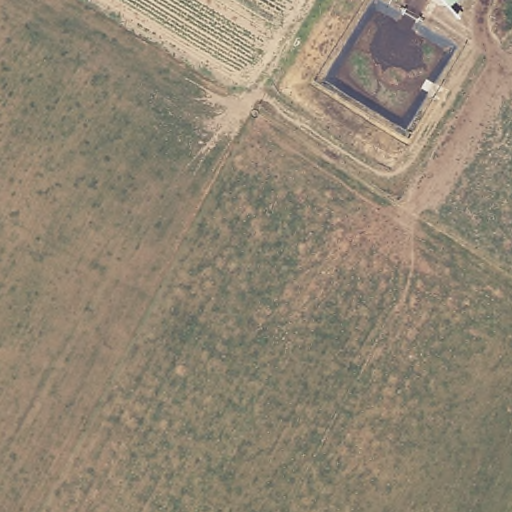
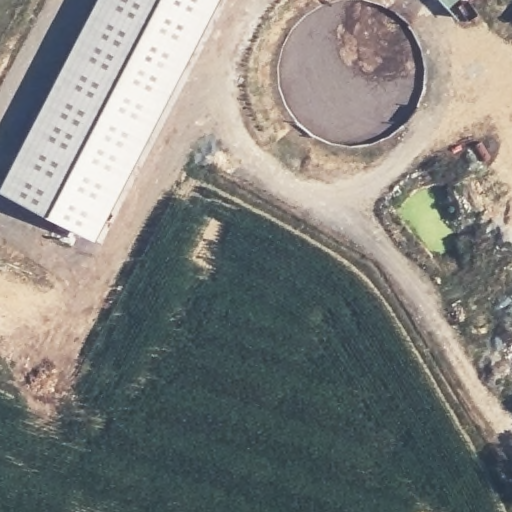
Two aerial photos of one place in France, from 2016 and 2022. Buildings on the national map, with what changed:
new [(0,194),(0,190),(97,0),(218,0),(95,240),(0,194)]

